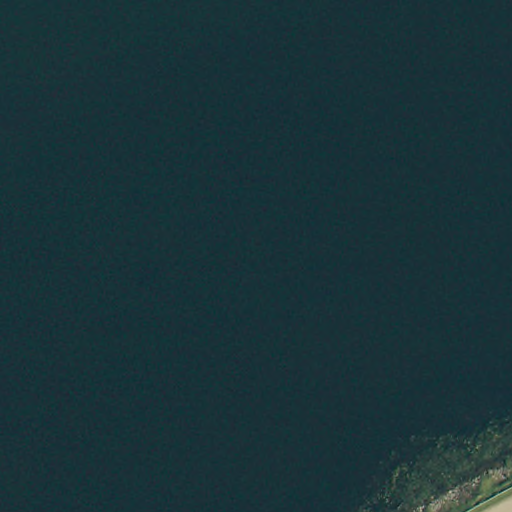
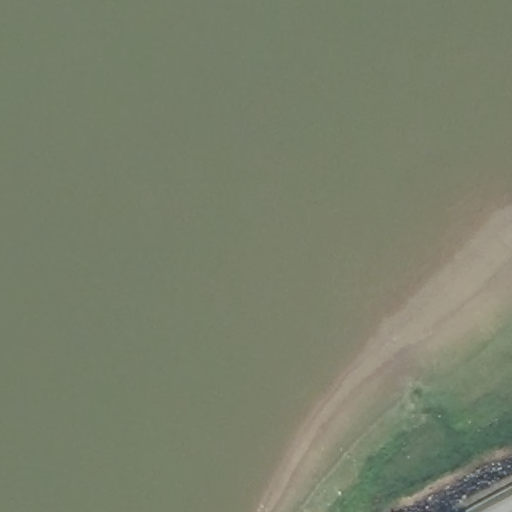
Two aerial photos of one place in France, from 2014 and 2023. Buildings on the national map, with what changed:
[]

